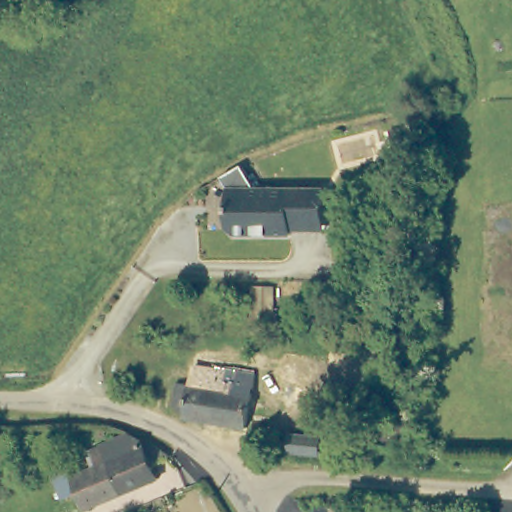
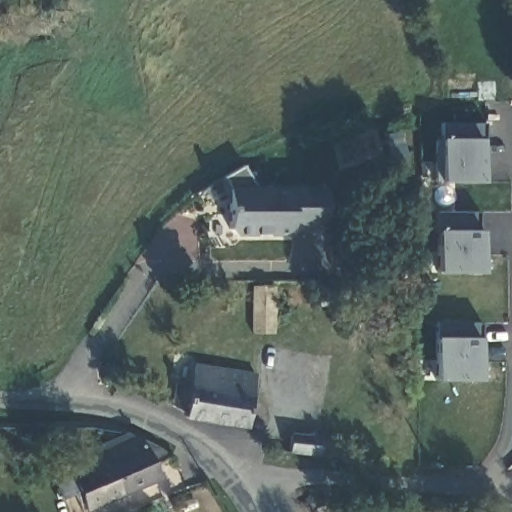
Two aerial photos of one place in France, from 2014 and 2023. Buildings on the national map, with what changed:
new [(484,122),(481,138),(479,181),(437,182),(438,140),(439,122),(484,122)]
unchanged [(325,184),(327,225),(298,227),(298,231),(240,234),(235,230),(233,198),(238,195),(227,175),(242,166),(255,187),(325,184)]
new [(479,212),(481,231),(479,272),(434,272),(434,230),(435,211),(479,212)]
unchanged [(276,330),(276,332),(252,331),(254,285),(275,284),(276,330)]
new [(479,338),(479,381),(433,380),(434,337),(434,322),(480,323),(479,338)]
unchanged [(252,375),(244,423),(187,413),(189,407),(172,405),(175,380),(193,382),(196,363),(222,368),(252,375)]
unchanged [(159,472),(161,476),(125,492),(111,462),(110,460),(103,445),(134,431),(184,461),(159,472)]
unchanged [(284,455),(284,436),(320,437),(319,457),(284,455)]
unchanged [(111,462),(125,492),(90,507),(82,488),(68,495),(57,473),(77,462),(80,473),(110,460),(111,462)]

